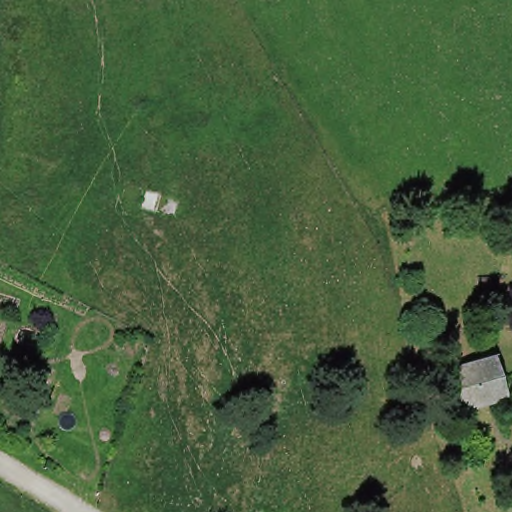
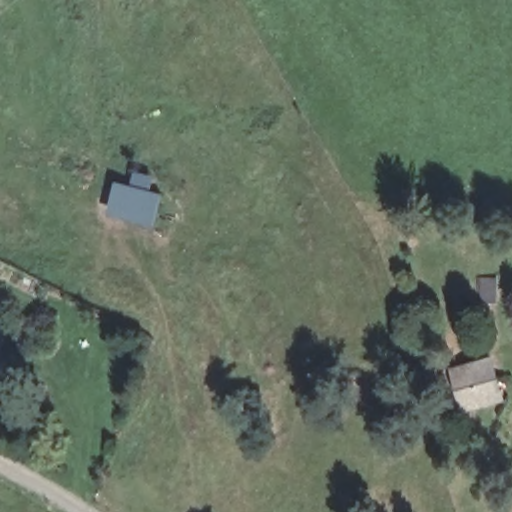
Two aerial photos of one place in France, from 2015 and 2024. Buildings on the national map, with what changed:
new [(111,181),(128,185),(132,172),(152,178),(146,193),(160,195),(152,227),(103,215),(111,181)]
unchanged [(482,311),(461,311),(461,284),(480,283),(482,311)]
unchanged [(459,407),(450,370),(492,360),(496,380),(500,398),(492,400),(459,407)]

